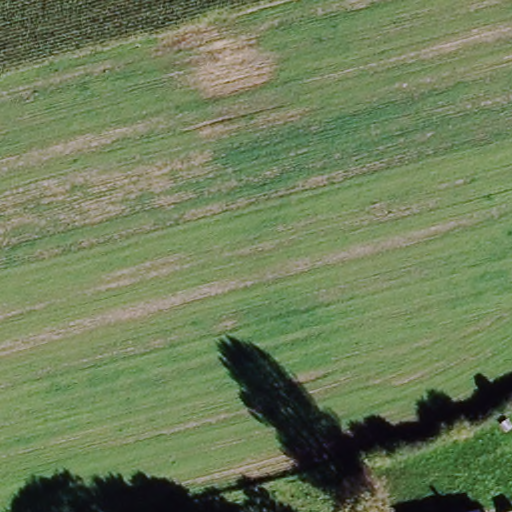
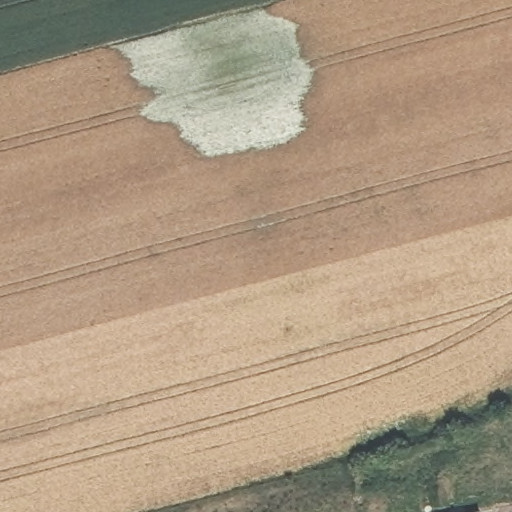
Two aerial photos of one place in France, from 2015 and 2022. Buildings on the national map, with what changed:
unchanged [(481,512),(466,512),(480,509),(481,512)]

